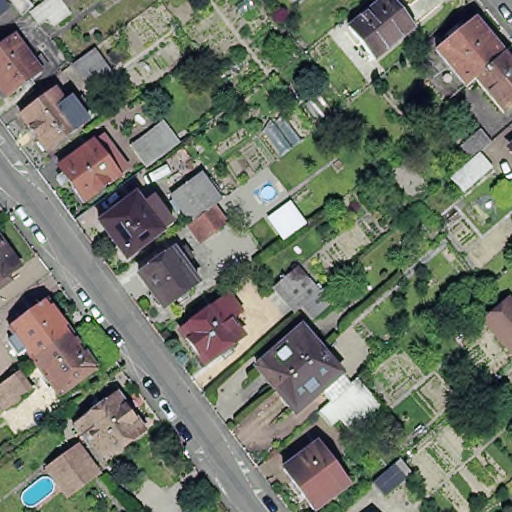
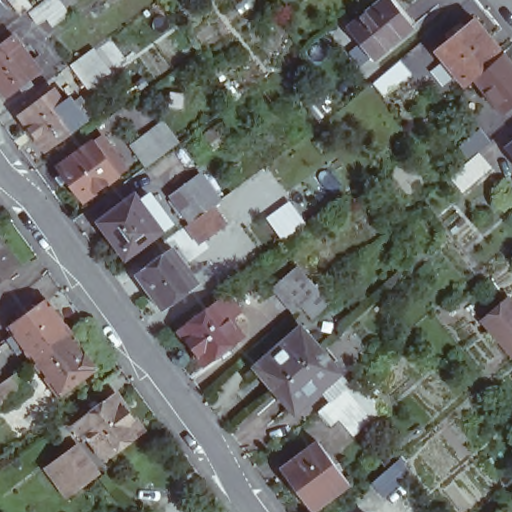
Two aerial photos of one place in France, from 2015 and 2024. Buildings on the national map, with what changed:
unchanged [(12,20),(0,6),(0,0),(13,0),(23,11),(12,20)]
unchanged [(43,30),(37,22),(29,29),(20,16),(24,12),(41,0),(45,0),(53,10),(59,19),(43,30)]
unchanged [(349,32),(388,0),(413,32),(374,64),(349,32)]
unchanged [(450,39),(446,34),(462,21),(466,25),(475,18),(503,52),(475,79),(466,86),(436,50),(450,39)]
unchanged [(7,97),(0,88),(0,45),(14,35),(33,61),(39,56),(46,65),(40,70),(41,71),(7,97)]
unchanged [(94,48),(111,72),(90,87),(73,63),(94,48)]
unchanged [(503,112),(475,79),(503,52),(512,64),(512,105),(503,112)]
unchanged [(19,114),(54,89),(64,101),(71,96),(88,120),(81,125),(46,150),(19,114)]
unchanged [(461,145),(480,129),(491,142),(472,158),(461,145)]
unchanged [(146,167),(129,145),(146,132),(164,155),(146,167)]
unchanged [(53,171),(88,146),(97,140),(122,174),(113,180),(78,205),(53,171)]
unchanged [(512,145),(512,151),(509,147),(512,145)]
unchanged [(204,240),(191,222),(171,196),(186,185),(201,174),(220,200),(213,206),(226,225),(204,240)]
unchanged [(157,239),(126,262),(99,226),(135,199),(142,208),(151,201),(172,229),(157,240),(157,239)]
unchanged [(20,272),(7,281),(10,286),(0,293),(0,245),(20,272)]
unchanged [(164,308),(161,305),(158,306),(157,306),(149,295),(150,295),(152,293),(138,273),(172,248),(176,254),(182,250),(188,259),(183,263),(198,283),(164,308)]
unchanged [(313,319),(302,306),(294,313),(283,301),(273,289),(298,267),(308,280),(318,291),(323,287),(334,300),(313,319)]
unchanged [(479,317),(510,295),(512,298),(512,354),(504,361),(479,317)]
unchanged [(201,370),(174,335),(212,306),(223,298),(237,316),(225,325),(238,342),(201,370)]
unchanged [(30,348),(23,353),(14,341),(21,336),(14,326),(25,318),(22,313),(31,306),(35,311),(51,300),(75,332),(38,358),(30,348)]
unchanged [(271,384),(270,384),(264,380),(261,374),(261,372),(256,366),(301,327),(321,350),(276,390),(271,384)]
unchanged [(75,332),(89,351),(101,367),(100,368),(101,368),(65,395),(38,358),(75,332)]
unchanged [(321,350),(341,372),(295,412),(290,406),(289,406),(283,402),(280,396),(280,395),(276,390),(321,350)]
unchanged [(14,375),(27,393),(12,404),(5,409),(0,402),(0,384),(14,375)]
unchanged [(345,388),(356,402),(330,425),(318,412),(345,388)]
unchanged [(84,445),(81,440),(80,440),(72,430),(115,398),(143,436),(106,463),(90,441),(84,445)]
unchanged [(310,512),(283,474),(318,448),(348,488),(315,512),(310,512)]
unchanged [(90,480),(70,495),(49,465),(69,450),(90,480)]
unchanged [(385,496),(373,482),(394,465),(400,460),(408,470),(402,475),(405,479),(385,496)]

